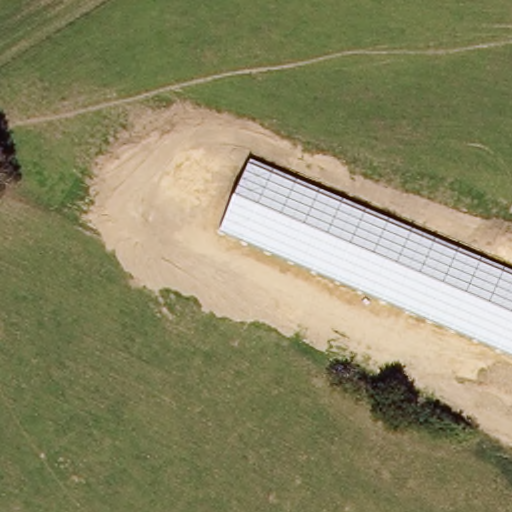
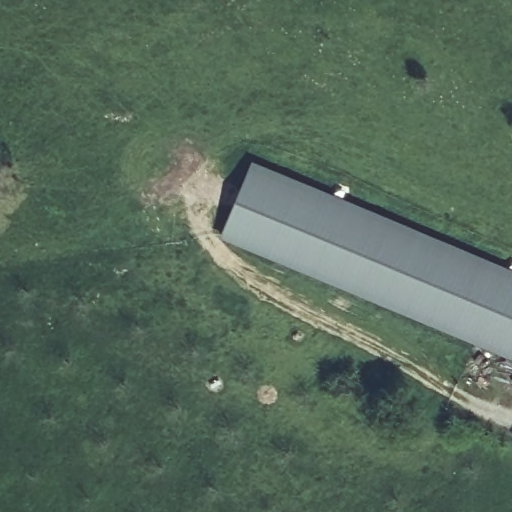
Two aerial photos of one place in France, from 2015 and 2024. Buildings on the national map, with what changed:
unchanged [(512,355),(221,233),(251,160),(512,269),(512,355)]

